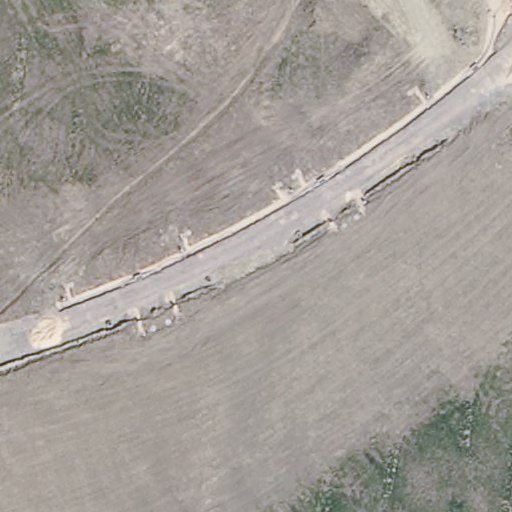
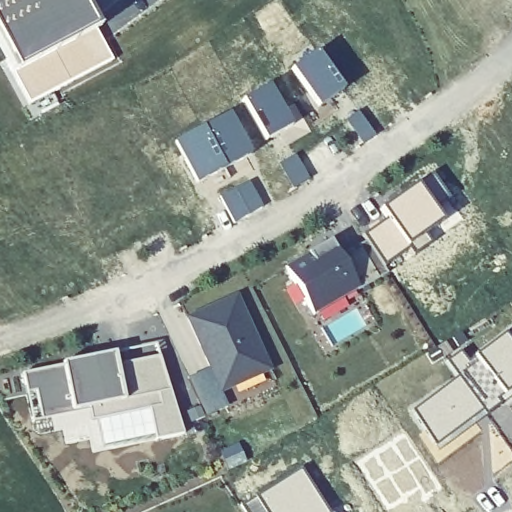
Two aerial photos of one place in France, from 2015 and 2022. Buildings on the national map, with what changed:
new [(82,0),(113,58),(30,103),(0,49),(0,0),(82,0)]
new [(322,49),(349,87),(323,103),(296,66),(322,49)]
new [(273,84),(298,125),(269,137),(250,96),(273,84)]
new [(232,109),(255,151),(200,180),(178,138),(232,109)]
new [(358,113),(376,137),(363,145),(346,120),(358,113)]
new [(310,178),(295,188),(281,164),(298,157),(310,178)]
new [(447,219),(412,241),(416,247),(387,264),(367,235),(395,217),(387,207),(422,182),(447,219)]
new [(248,184),(263,207),(233,221),(221,197),(248,184)]
unchanged [(308,255),(307,254),(330,241),(340,257),(366,241),(387,274),(356,292),(355,291),(312,316),(285,268),(308,255)]
new [(187,318),(236,296),(269,370),(220,392),(210,369),(205,357),(200,347),(187,318)]
new [(512,388),(509,391),(478,354),(506,332),(512,339),(512,388)]
new [(143,411),(135,412),(109,417),(91,421),(89,411),(41,420),(40,417),(35,392),(26,393),(22,373),(74,362),(113,355),(114,360),(115,366),(159,357),(182,435),(160,439),(149,442),(143,411)]
new [(210,369),(220,392),(227,407),(205,417),(188,380),(210,369)]
new [(486,411),(438,442),(417,408),(461,375),(486,411)]
new [(406,436),(440,490),(425,499),(420,490),(387,511),(360,463),(406,436)]
new [(332,512),(270,512),(258,495),(303,468),(332,512)]

